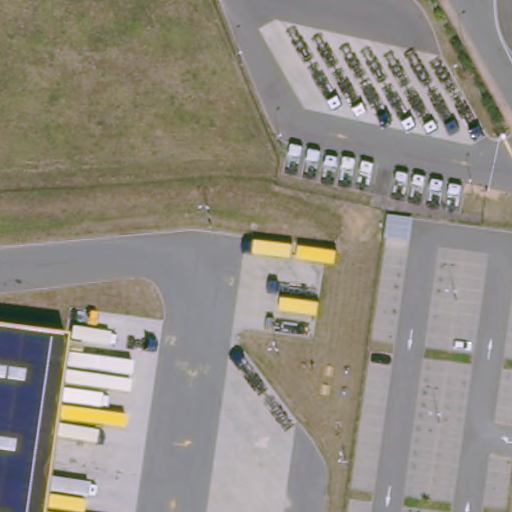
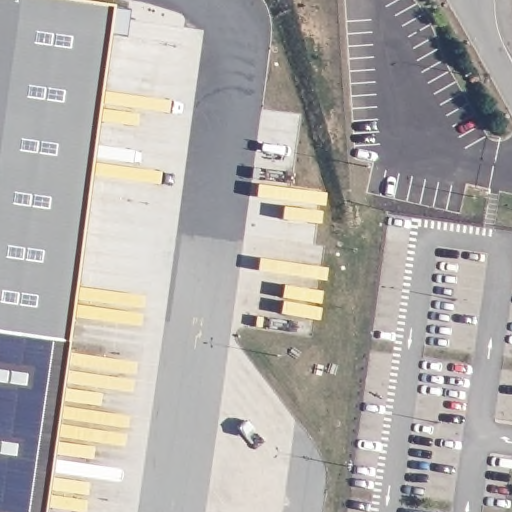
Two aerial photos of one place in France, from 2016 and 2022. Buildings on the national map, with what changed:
new [(0,0),(87,0),(115,4),(71,338),(0,328),(0,0)]
unchanged [(46,512),(0,512),(0,328),(71,338),(46,512)]

